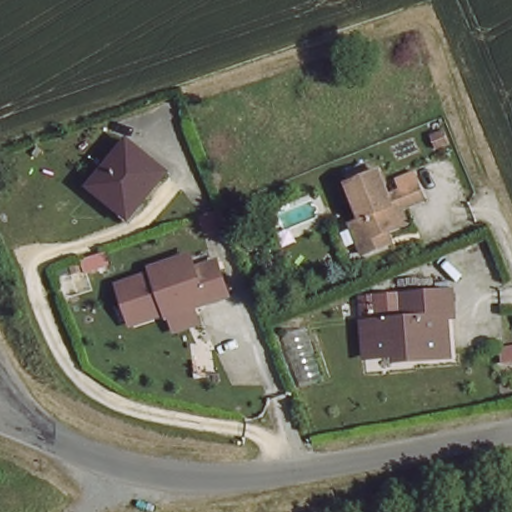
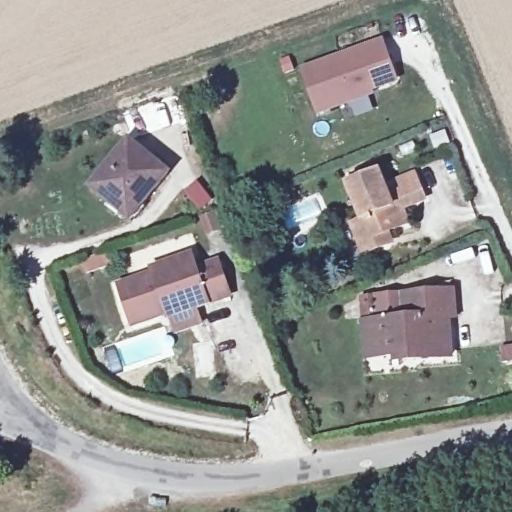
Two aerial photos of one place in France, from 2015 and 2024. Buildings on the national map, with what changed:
new [(380,41),(395,89),(314,117),(299,69),(380,41)]
unchanged [(128,221),(88,192),(126,145),(165,174),(128,221)]
unchanged [(425,221),(371,243),(376,252),(348,264),(336,236),(350,232),(334,192),(363,180),(374,205),(395,197),(392,188),(409,180),(425,221)]
unchanged [(180,275),(201,266),(214,299),(192,307),(191,303),(118,331),(103,294),(137,281),(135,276),(174,260),(180,275)]
unchanged [(362,332),(382,330),(400,327),(396,300),(450,290),(455,318),(447,319),(454,356),(426,360),(424,353),(387,360),(370,363),(362,332)]

